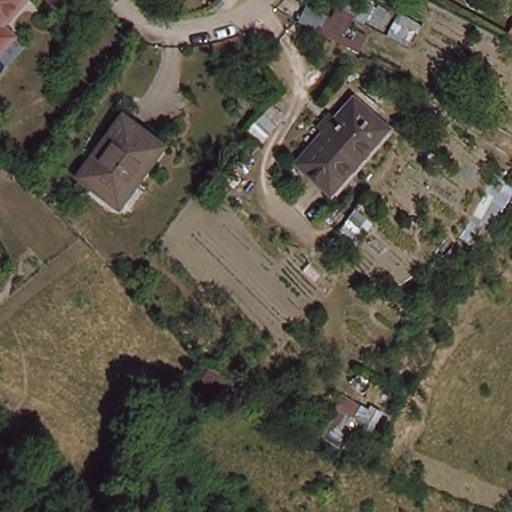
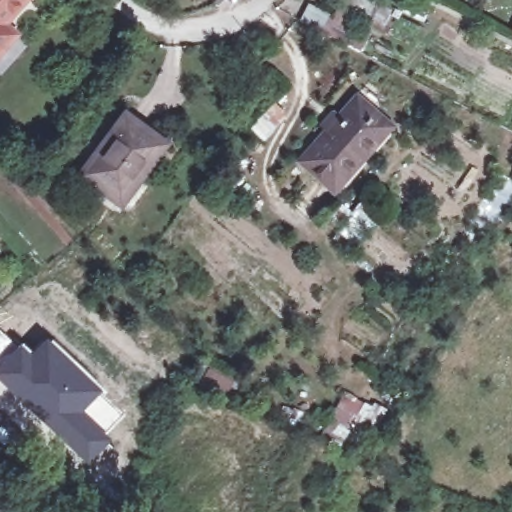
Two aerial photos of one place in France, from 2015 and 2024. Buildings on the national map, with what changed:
unchanged [(13,20),(0,33),(0,0),(10,0),(1,8),(13,20)]
unchanged [(335,192),(301,161),(346,109),(356,97),(371,109),(391,127),(335,192)]
unchanged [(159,159),(150,151),(102,206),(74,180),(136,109),(173,143),(159,159)]
new [(47,336),(104,393),(88,410),(106,432),(104,434),(111,441),(88,467),(49,431),(0,381),(0,330),(15,347),(20,342),(30,352),(47,336)]

